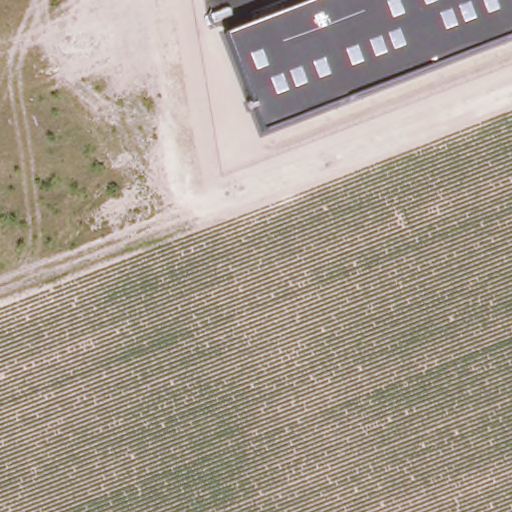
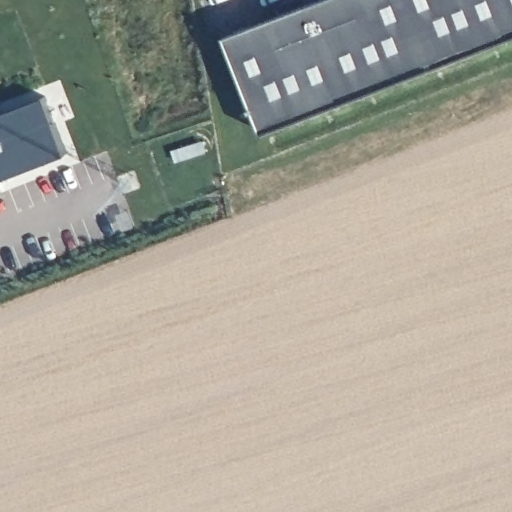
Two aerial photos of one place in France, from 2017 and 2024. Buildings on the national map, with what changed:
unchanged [(314,0),(512,0),(512,35),(263,131),(227,33),(314,0)]
new [(50,98),(76,151),(3,180),(8,191),(0,194),(0,117),(50,98)]

